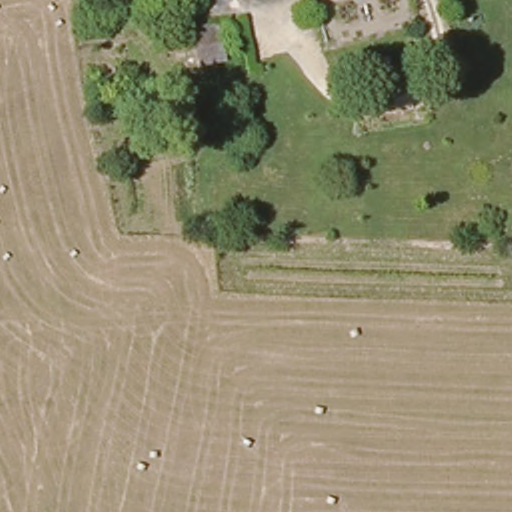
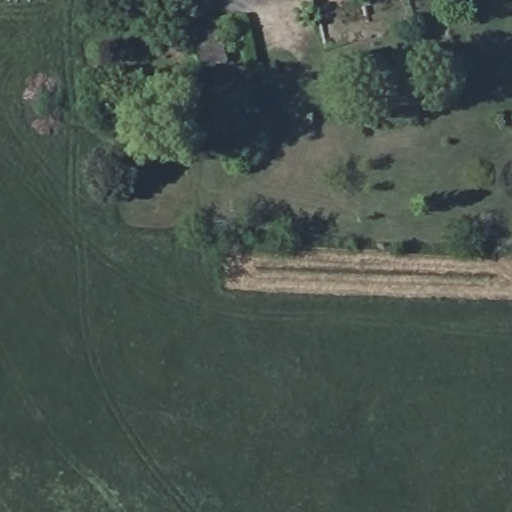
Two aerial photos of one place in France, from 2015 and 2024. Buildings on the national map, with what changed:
unchanged [(210,31),(221,28),(227,52),(204,58),(196,34),(166,40),(163,28),(207,19),(210,31)]

